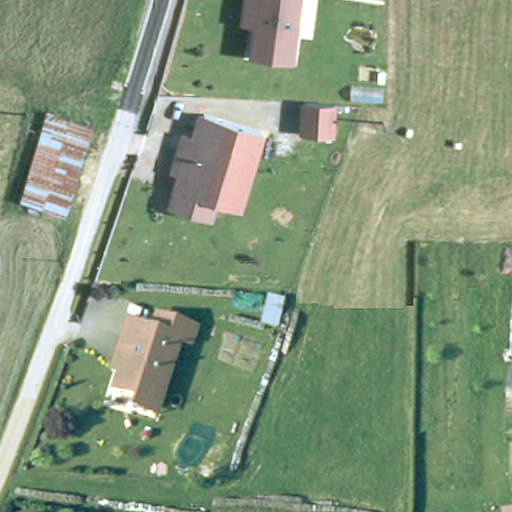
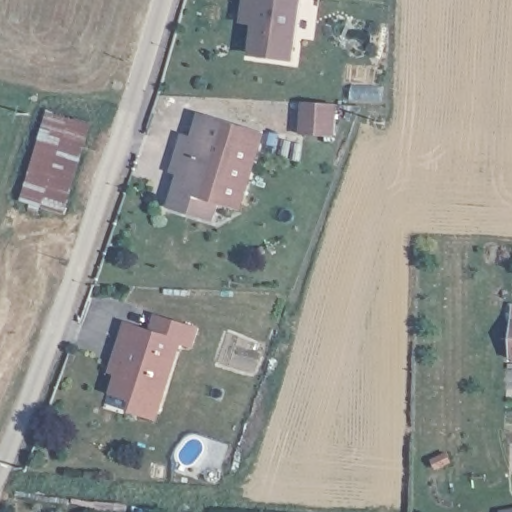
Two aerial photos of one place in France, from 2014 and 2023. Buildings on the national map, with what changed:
unchanged [(250,62),(251,27),(239,25),(241,0),(305,0),(295,65),(250,62)]
unchanged [(338,102),(337,135),(299,134),(299,101),(338,102)]
unchanged [(244,212),(218,206),(213,221),(163,205),(176,171),(166,167),(181,124),(192,129),(198,107),(268,128),(244,212)]
unchanged [(84,132),(68,201),(30,192),(44,121),(84,132)]
unchanged [(139,398),(139,395),(116,387),(121,368),(116,367),(124,336),(129,320),(154,326),(159,311),(200,322),(196,338),(183,335),(164,406),(163,412),(136,405),(139,398)]
unchanged [(512,314),(512,350),(509,350),(511,313),(512,314)]
unchanged [(512,511),(512,512),(509,512),(512,511)]

